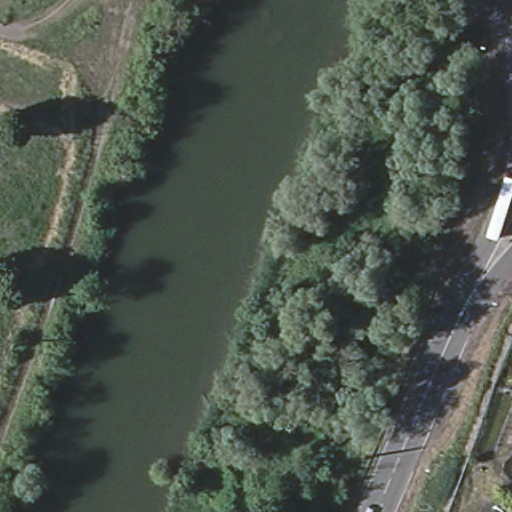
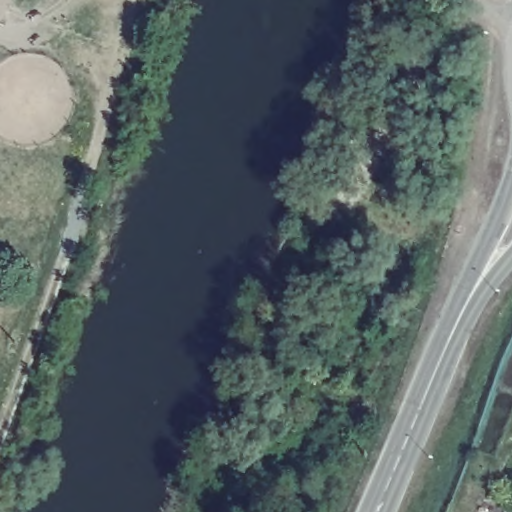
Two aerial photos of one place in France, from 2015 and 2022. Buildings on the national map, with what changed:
[]

